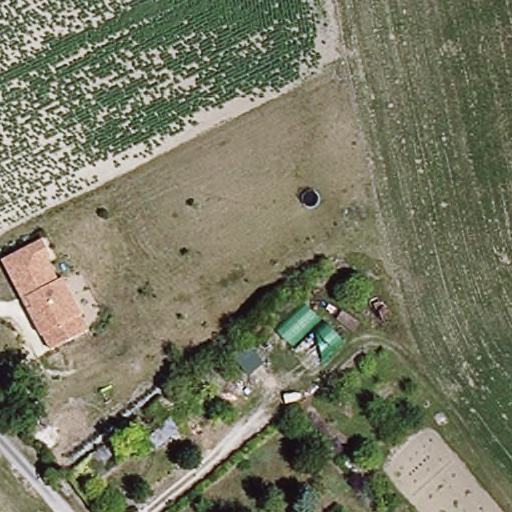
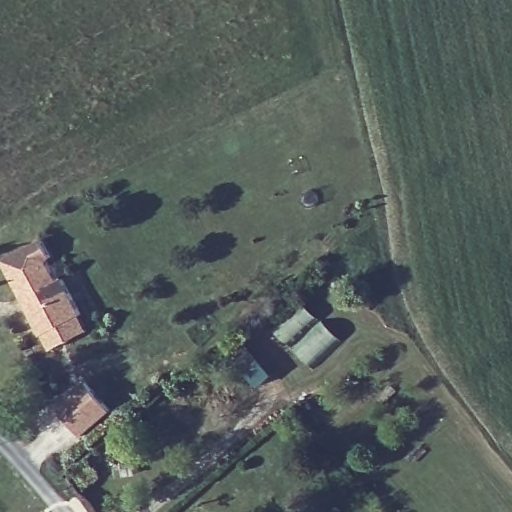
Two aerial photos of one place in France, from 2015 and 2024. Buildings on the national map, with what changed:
unchanged [(45,237),(55,257),(50,260),(61,280),(65,277),(92,330),(51,351),(2,260),(45,237)]
unchanged [(303,301),(344,343),(316,370),(272,329),(303,301)]
new [(89,379),(112,407),(82,434),(57,405),(89,379)]

